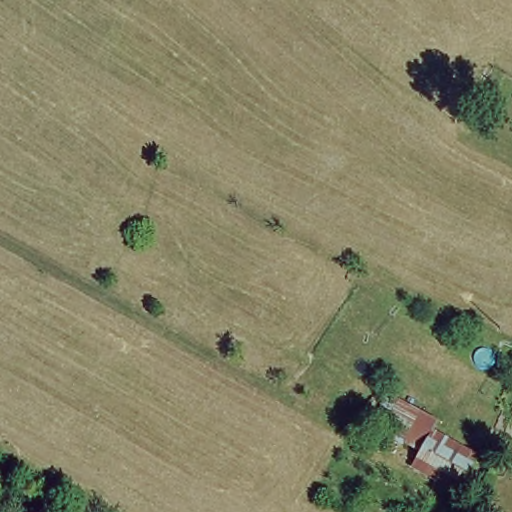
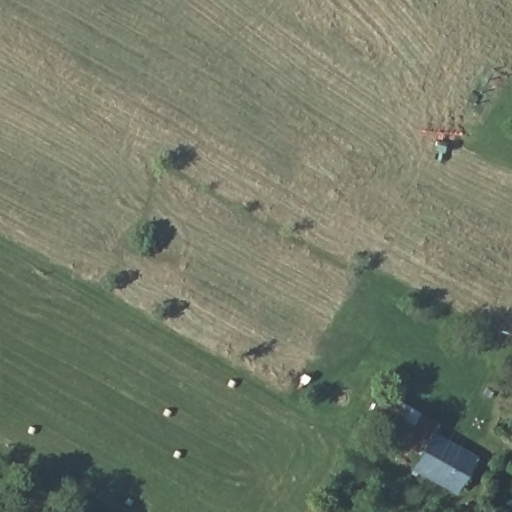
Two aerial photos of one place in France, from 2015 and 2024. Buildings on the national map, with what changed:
unchanged [(407,470),(416,453),(365,432),(381,394),(437,421),(432,432),(474,454),(453,497),(407,470)]

